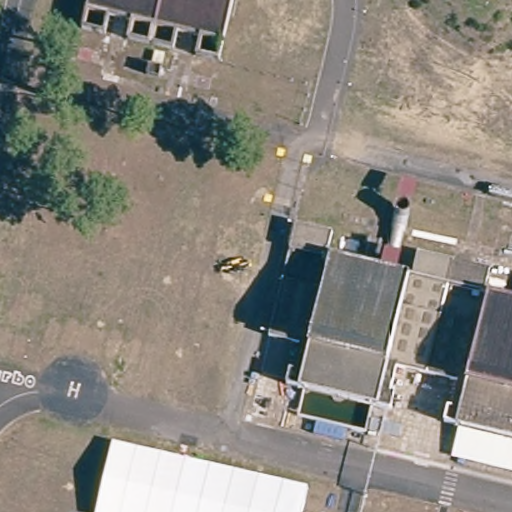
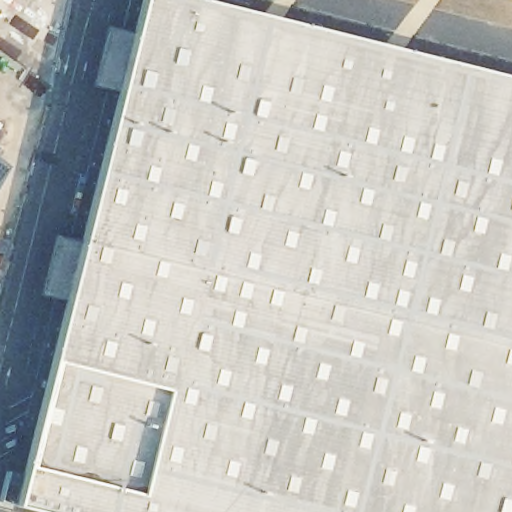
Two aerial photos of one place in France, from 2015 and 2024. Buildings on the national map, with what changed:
new [(202,0),(512,78),(512,512),(46,512),(16,504),(143,0),(202,0)]
demolished [(197,36),(172,30),(167,48),(130,39),(135,22),(106,15),(102,32),(84,28),(90,0),(231,0),(217,57),(194,52),(197,36)]
new [(11,167),(0,185),(0,159),(11,167)]
demolished [(395,357),(394,359),(386,402),(372,401),(367,421),(295,407),(300,384),(289,383),(300,338),(265,331),(291,215),(327,224),(322,245),(407,264),(412,243),(449,250),(424,364),(395,357)]
demolished [(455,415),(447,414),(456,371),(424,364),(449,250),(491,259),(486,280),(512,286),(512,453),(448,439),(455,415)]

